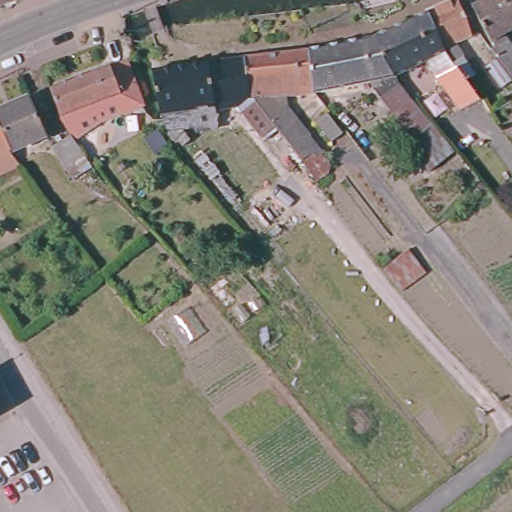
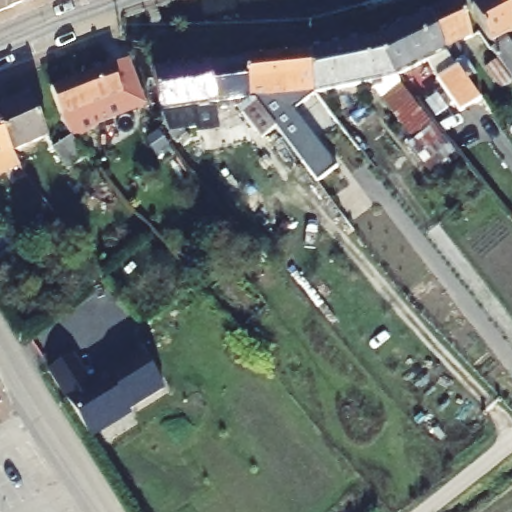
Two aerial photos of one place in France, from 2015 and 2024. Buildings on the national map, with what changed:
unchanged [(0,8),(0,0),(2,0),(5,6),(0,8)]
unchanged [(2,0),(26,0),(5,6),(2,0)]
unchanged [(512,55),(512,87),(488,54),(483,47),(487,45),(483,39),(482,40),(464,7),(476,0),(512,0),(512,28),(497,36),(512,55)]
unchanged [(453,1),(469,36),(440,49),(425,12),(453,1)]
unchanged [(440,49),(445,56),(450,63),(459,57),(472,77),(464,82),(470,92),(476,100),(447,115),(459,136),(452,140),(450,136),(445,137),(408,90),(435,79),(424,60),(392,76),(371,36),(425,12),(440,49)]
unchanged [(371,36),(392,76),(378,79),(378,84),(368,86),(367,80),(313,91),(306,49),(371,36)]
unchanged [(283,171),(258,139),(260,137),(242,115),(255,105),(250,100),(248,101),(242,59),(306,49),(313,91),(285,95),(287,109),(308,135),(305,137),(331,169),(315,182),(299,162),(285,173),(283,171)]
unchanged [(213,103),(213,108),(212,108),(190,110),(191,127),(179,129),(179,131),(187,141),(181,146),(177,140),(173,142),(163,129),(151,70),(157,69),(206,63),(242,59),(248,101),(213,103)]
unchanged [(489,60),(505,81),(494,89),(478,67),(489,60)]
unchanged [(73,179),(66,169),(50,147),(70,134),(60,120),(52,98),(48,87),(108,65),(120,94),(87,106),(90,109),(98,120),(73,139),(85,156),(92,166),(73,179)]
unchanged [(452,153),(432,169),(375,102),(395,86),(452,153)]
unchanged [(27,97),(45,136),(9,152),(0,134),(0,109),(27,97)]
unchanged [(9,152),(15,165),(0,172),(0,134),(9,152)]
new [(71,357),(87,382),(139,349),(163,388),(127,410),(125,404),(115,410),(107,427),(90,437),(50,371),(71,357)]

